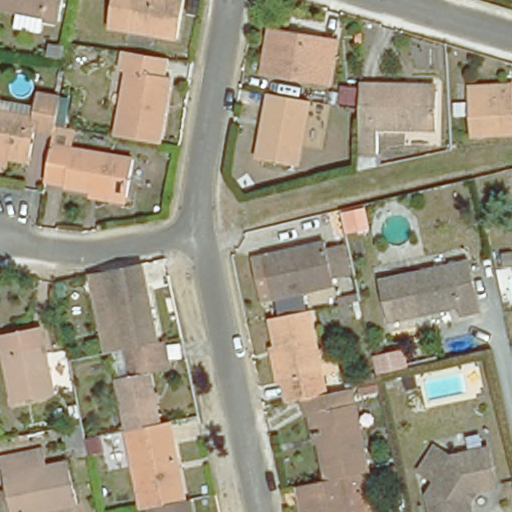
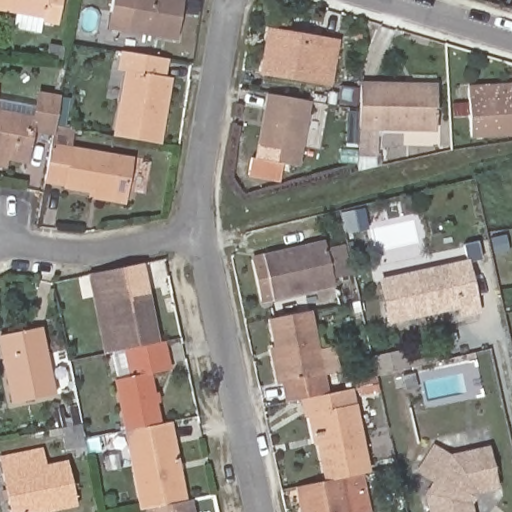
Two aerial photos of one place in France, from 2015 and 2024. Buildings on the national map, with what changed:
unchanged [(65,19),(47,15),(0,7),(0,0),(69,0),(65,19)]
unchanged [(177,36),(112,25),(116,0),(184,0),(177,36)]
unchanged [(262,76),(268,33),(340,44),(332,88),(262,76)]
unchanged [(127,70),(120,68),(124,49),(127,50),(167,57),(163,75),(171,77),(159,141),(115,134),(127,70)]
unchanged [(376,133),(375,169),(360,172),(361,133),(361,113),(362,87),(437,88),(437,133),(376,133)]
unchanged [(470,101),(469,90),(495,88),(512,88),(512,138),(471,140),(470,101)]
unchanged [(360,94),(356,108),(342,106),(345,91),(360,94)]
unchanged [(9,168),(0,167),(0,115),(37,122),(42,96),(61,99),(57,124),(56,129),(55,135),(35,132),(30,165),(29,171),(9,168)]
unchanged [(287,101),(306,104),(295,168),(253,160),(262,97),(287,101)]
unchanged [(468,107),(468,121),(454,122),(453,108),(468,107)]
unchanged [(132,167),(124,210),(90,204),(91,200),(63,196),(64,192),(47,189),(53,154),(132,167)]
unchanged [(320,245),(341,240),(350,277),(328,282),(330,288),(258,304),(249,261),(320,245)]
unchanged [(464,262),(475,308),(460,311),(457,304),(388,320),(380,281),(464,262)]
unchanged [(120,347),(109,350),(94,273),(97,272),(144,263),(159,340),(127,346),(120,347)]
unchanged [(326,392),(303,397),(286,400),(282,382),(276,383),(270,347),(275,345),(270,318),(308,309),(326,392)]
unchanged [(19,411),(4,346),(47,336),(60,401),(19,411)]
unchanged [(127,428),(117,378),(133,375),(127,346),(159,340),(165,339),(171,367),(151,371),(161,421),(127,428)]
unchanged [(317,443),(312,443),(303,397),(326,392),(352,387),(370,470),(365,471),(342,475),(325,479),(317,443)]
unchanged [(127,428),(161,421),(171,419),(187,498),(150,505),(142,507),(127,428)]
unchanged [(84,425),(85,436),(87,444),(77,446),(73,427),(84,425)]
unchanged [(451,457),(486,449),(495,485),(465,492),(470,512),(429,512),(425,494),(433,479),(417,470),(431,445),(451,457)]
unchanged [(49,469),(74,464),(83,508),(63,512),(17,512),(7,462),(45,454),(49,469)]
unchanged [(365,471),(368,488),(373,512),(306,512),(301,484),(325,479),(342,475),(365,471)]
unchanged [(187,498),(193,497),(196,512),(151,512),(150,505),(187,498)]

